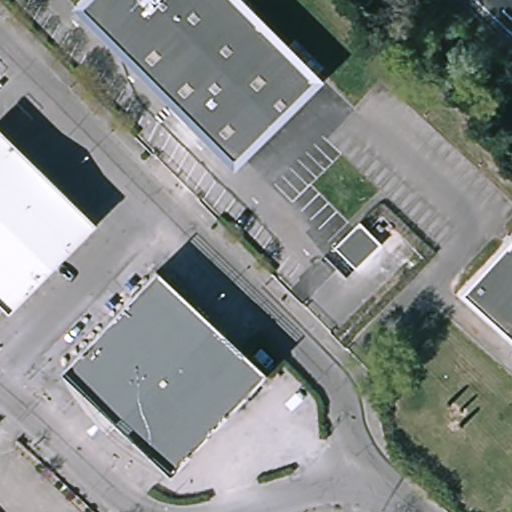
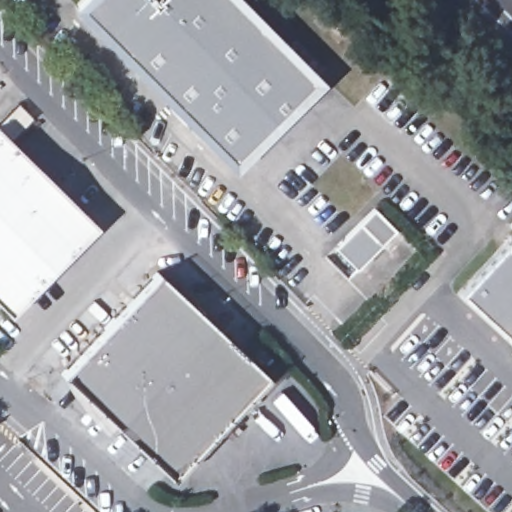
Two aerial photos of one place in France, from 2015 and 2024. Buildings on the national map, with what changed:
unchanged [(80,0),(230,0),(310,81),(228,161),(74,5),(80,0)]
unchanged [(96,225),(10,313),(0,303),(0,132),(96,225)]
unchanged [(378,242),(352,268),(330,245),(355,219),(378,242)]
unchanged [(508,245),(510,248),(512,246),(512,338),(463,293),(508,245)]
unchanged [(266,372),(168,473),(61,369),(160,268),(266,372)]

